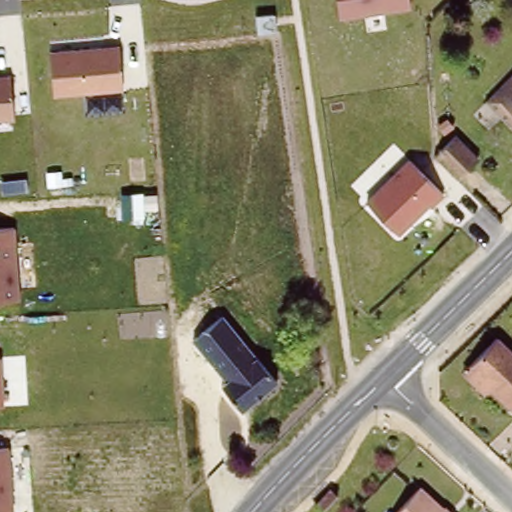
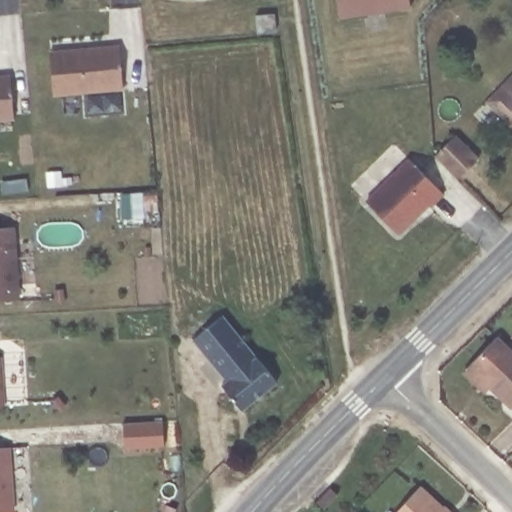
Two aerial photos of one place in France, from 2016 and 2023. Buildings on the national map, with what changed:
unchanged [(409,0),(410,8),(341,16),(338,0),(409,0)]
unchanged [(49,50),(120,45),(124,90),(53,95),(49,50)]
unchanged [(13,74),(15,120),(0,121),(0,75),(13,74)]
unchanged [(512,85),(512,121),(494,103),(512,85)]
unchanged [(452,139),(474,159),(454,178),(434,156),(452,139)]
unchanged [(368,200),(414,157),(444,192),(400,234),(368,200)]
unchanged [(18,225),(22,299),(0,301),(0,226),(18,225)]
unchanged [(241,371),(228,383),(188,337),(223,313),(256,356),(241,371)]
unchanged [(471,366),(498,337),(512,350),(512,404),(492,385),(486,391),(466,372),(471,366)]
unchanged [(246,410),(224,386),(241,371),(256,356),(279,382),(246,410)]
unchanged [(3,403),(0,403),(0,364),(3,403)]
new [(163,421),(164,446),(126,448),(124,423),(163,421)]
unchanged [(12,447),(16,511),(3,512),(0,512),(0,447),(12,447)]
unchanged [(419,482),(450,512),(391,512),(419,482)]

